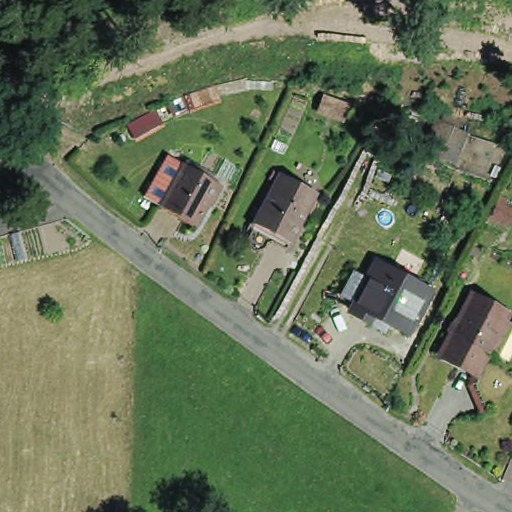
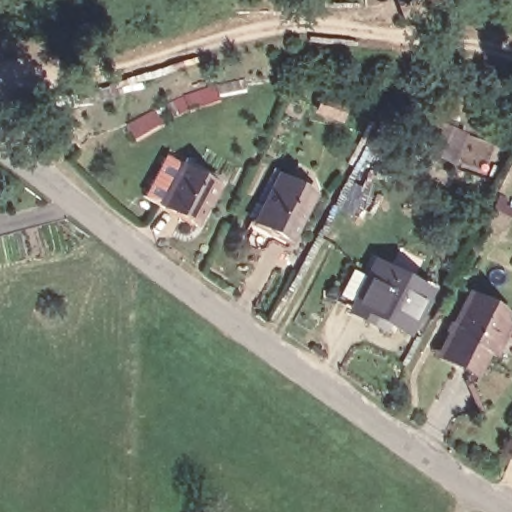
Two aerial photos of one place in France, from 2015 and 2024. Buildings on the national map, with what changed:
unchanged [(435,129),(447,134),(435,158),(422,153),(435,129)]
unchanged [(180,168),(215,187),(193,229),(157,210),(180,168)]
unchanged [(272,178),(305,196),(279,244),(247,226),(272,178)]
unchanged [(411,332),(404,327),(399,335),(379,326),(375,332),(345,313),(346,311),(330,303),(347,273),(362,282),(370,267),(420,294),(417,301),(425,306),(411,332)]
unchanged [(489,364),(480,360),(479,363),(472,376),(470,375),(434,357),(465,300),(500,319),(502,320),(499,325),(507,330),(489,364)]

